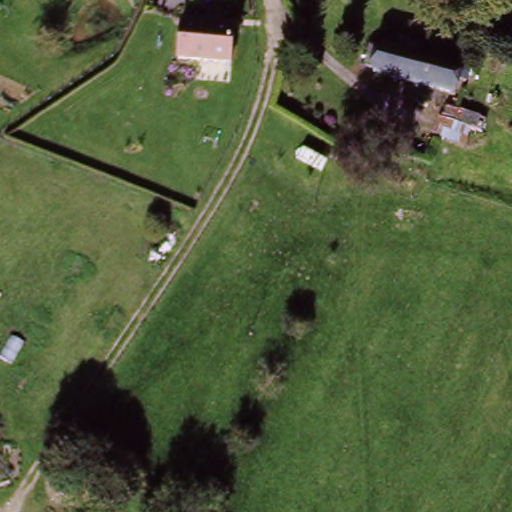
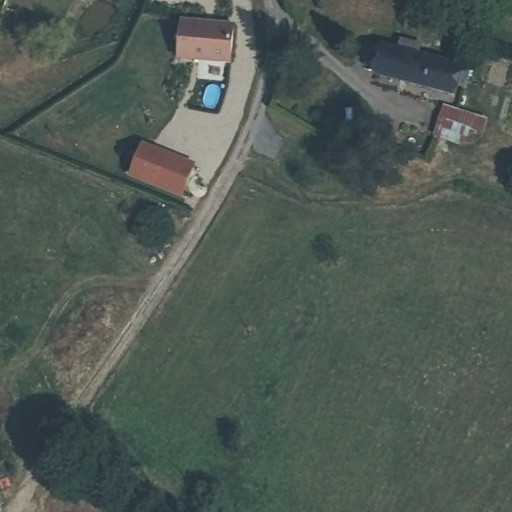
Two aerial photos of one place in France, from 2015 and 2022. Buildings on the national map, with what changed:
unchanged [(231,60),(181,56),(184,18),(234,22),(231,60)]
unchanged [(363,70),(370,46),(424,64),(427,54),(467,67),(455,100),(363,70)]
unchanged [(431,137),(443,107),(476,122),(463,151),(431,137)]
new [(198,162),(182,198),(128,175),(143,140),(198,162)]

